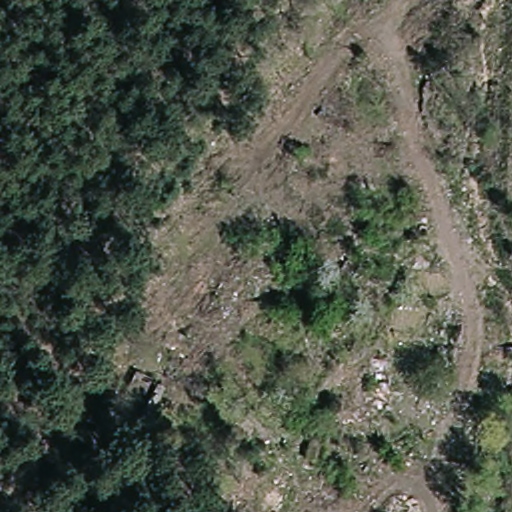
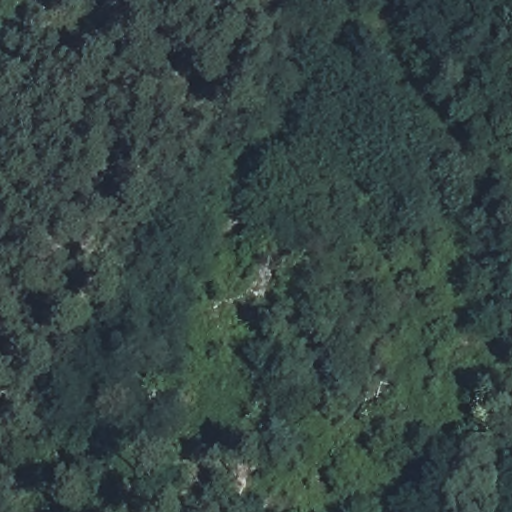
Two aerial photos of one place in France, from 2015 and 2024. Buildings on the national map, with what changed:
unchanged [(154,415),(124,399),(138,367),(170,380),(154,415)]

